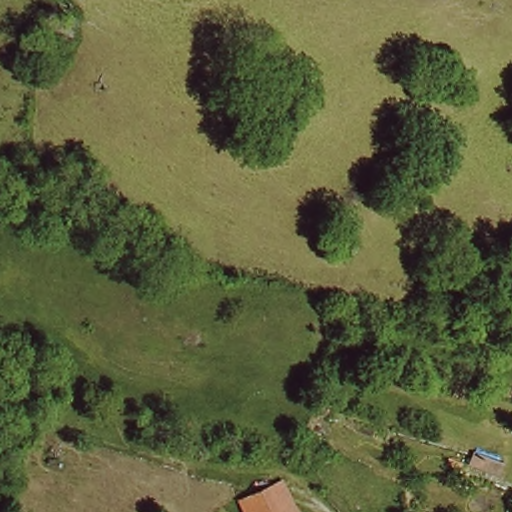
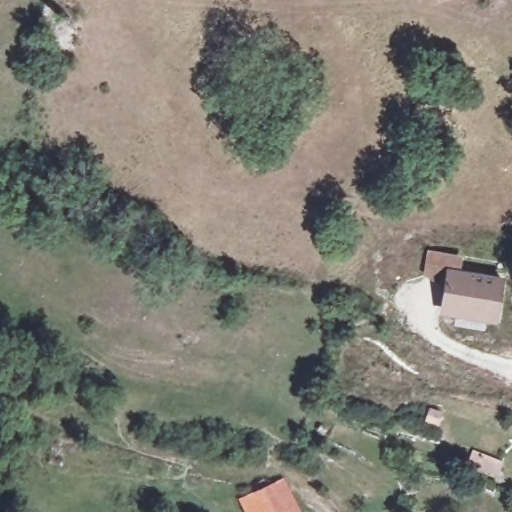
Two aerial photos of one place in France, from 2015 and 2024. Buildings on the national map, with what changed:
new [(497,323),(440,313),(446,283),(424,274),(428,250),(462,255),(460,270),(504,276),(497,323)]
unchanged [(256,512),(248,491),(278,483),(293,512),(256,512)]

